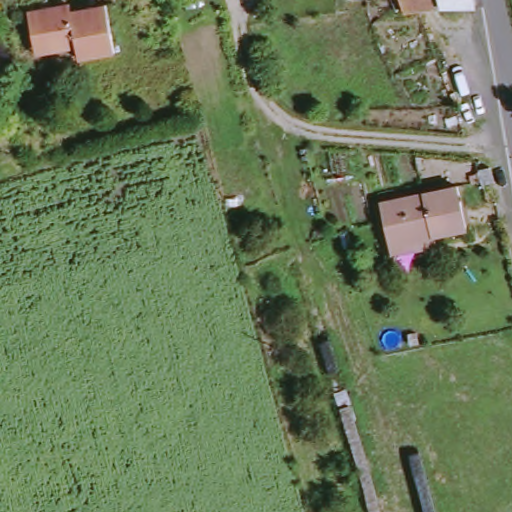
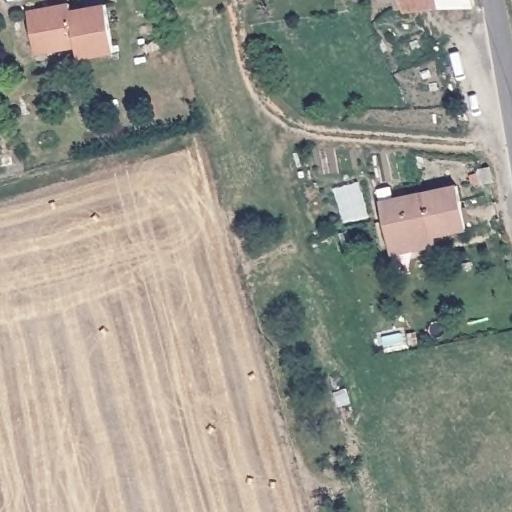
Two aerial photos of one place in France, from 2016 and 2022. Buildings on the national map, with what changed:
unchanged [(481,6),(448,5),(413,12),(408,0),(480,0),(481,6)]
unchanged [(33,43),(29,12),(69,6),(71,13),(113,7),(122,55),(79,61),(77,52),(52,55),(35,58),(33,43)]
unchanged [(393,247),(384,206),(460,189),(469,230),(437,237),(439,246),(420,250),(395,256),(393,247)]

